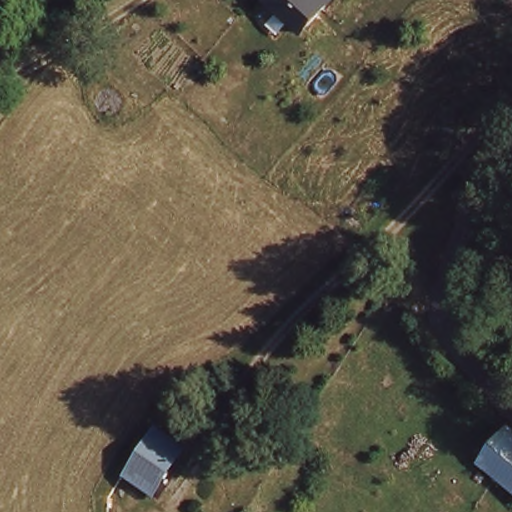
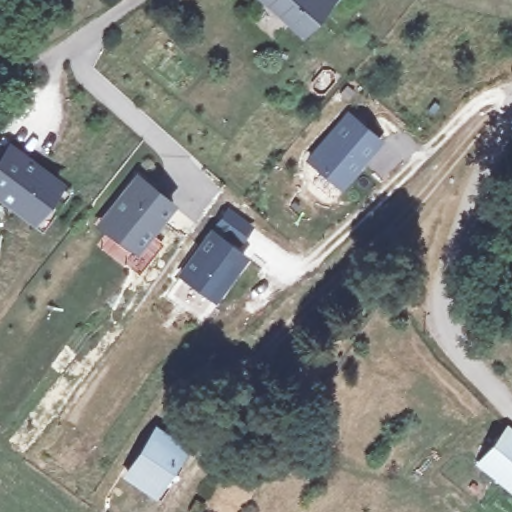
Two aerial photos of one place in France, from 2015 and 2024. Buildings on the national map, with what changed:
unchanged [(287,49),(242,3),(246,0),(316,0),(327,11),(287,49)]
new [(351,109),(381,135),(344,181),(313,156),(351,109)]
new [(0,207),(0,156),(6,161),(7,160),(56,195),(55,198),(64,204),(38,240),(12,222),(15,218),(0,207)]
new [(136,185),(170,212),(136,259),(100,232),(136,185)]
new [(210,230),(249,256),(215,304),(177,277),(210,230)]
unchanged [(472,459),(501,424),(512,433),(512,490),(508,487),(472,459)]
unchanged [(178,446),(152,486),(127,468),(153,428),(178,446)]

